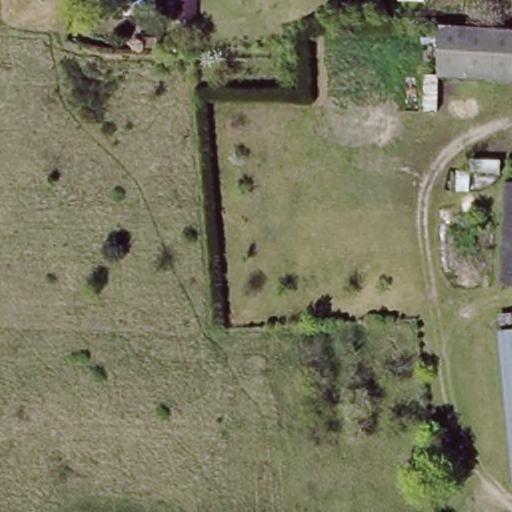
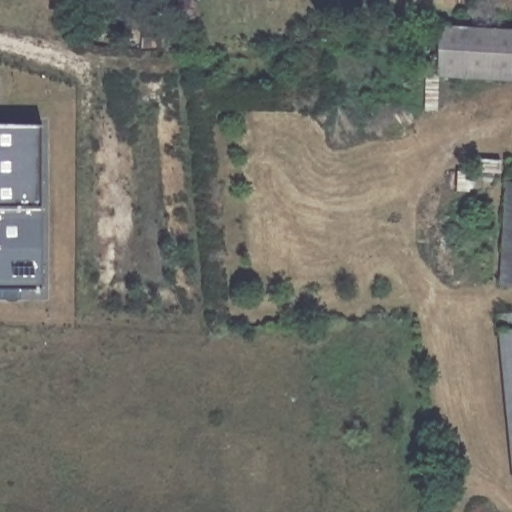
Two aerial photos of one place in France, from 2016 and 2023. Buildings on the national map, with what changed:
unchanged [(178,12),(179,0),(194,0),(193,12),(178,12)]
unchanged [(436,73),(435,33),(512,34),(512,84),(436,73)]
new [(40,207),(41,289),(0,289),(0,124),(41,125),(40,207)]
unchanged [(501,285),(505,222),(508,185),(512,185),(512,286),(501,285)]
unchanged [(500,338),(512,337),(512,462),(500,338)]

